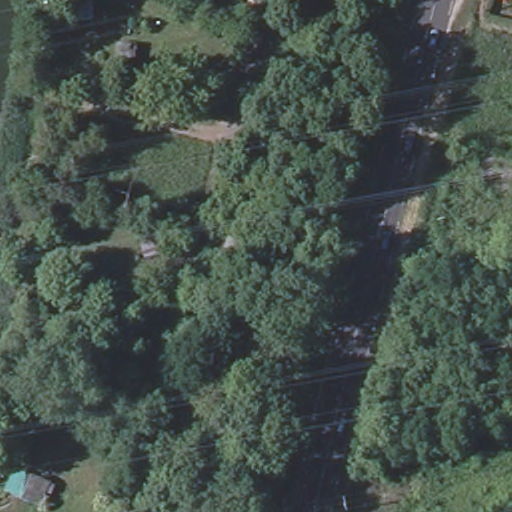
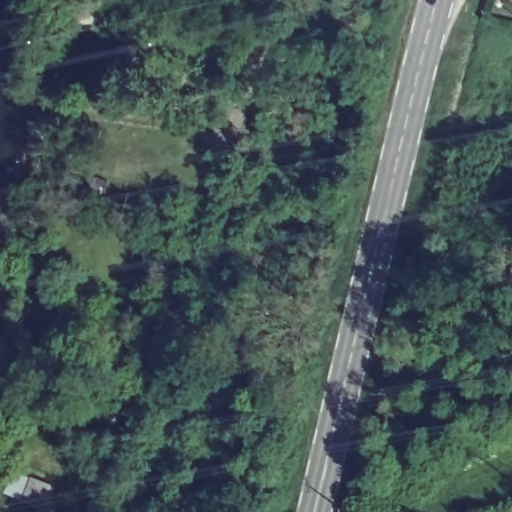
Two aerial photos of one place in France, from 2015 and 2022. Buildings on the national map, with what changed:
unchanged [(78,370),(75,401),(51,398),(55,367),(78,370)]

